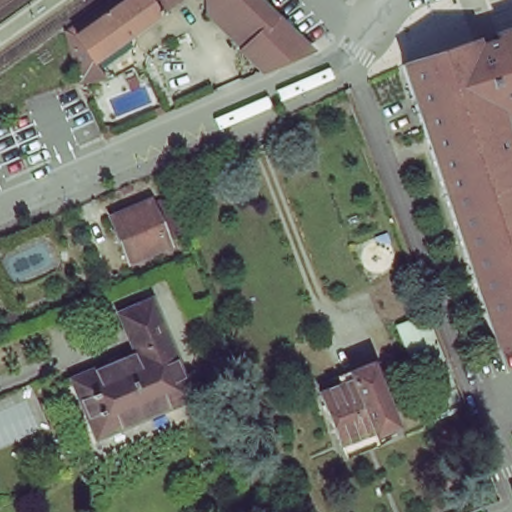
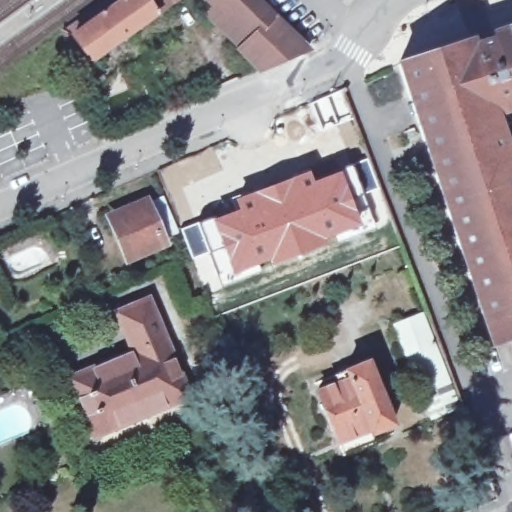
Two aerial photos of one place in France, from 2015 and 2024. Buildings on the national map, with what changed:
unchanged [(71,44),(68,31),(110,0),(122,0),(125,4),(129,0),(180,0),(94,61),(78,72),(75,58),(71,44)]
unchanged [(207,0),(212,0),(210,3),(207,0)]
unchanged [(261,0),(311,50),(264,71),(209,15),(210,3),(212,0),(261,0)]
unchanged [(510,114),(508,116),(506,117),(504,118),(502,119),(500,120),(498,120),(495,120),(494,120),(492,119),(488,118),(512,190),(512,349),(510,345),(488,352),(394,71),(465,48),(490,40),(512,32),(512,110),(512,111),(510,113),(510,114)]
new [(231,198),(309,168),(313,179),(339,169),(367,158),(376,187),(352,199),(360,225),(330,237),(323,244),(323,246),(233,277),(234,281),(220,287),(209,253),(192,259),(180,230),(209,218),(235,209),(231,198)]
unchanged [(147,204),(164,245),(129,260),(111,219),(147,204)]
unchanged [(410,272),(414,282),(402,287),(397,274),(410,269),(410,272)]
unchanged [(100,429),(76,372),(139,345),(134,333),(123,307),(152,295),(163,321),(192,391),(100,429)]
unchanged [(429,417),(420,395),(394,324),(422,312),(450,384),(458,406),(429,417)]
unchanged [(362,362),(390,432),(338,453),(310,384),(362,362)]

